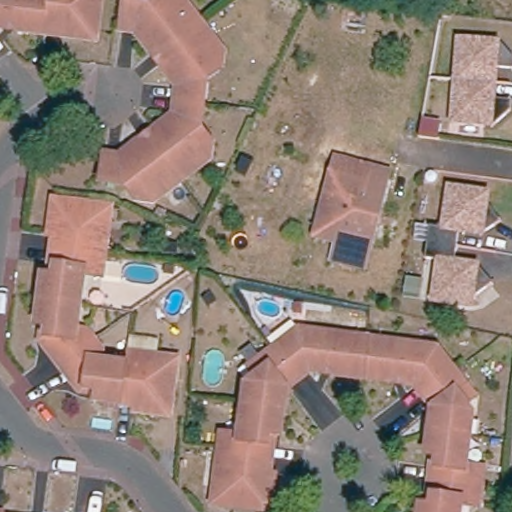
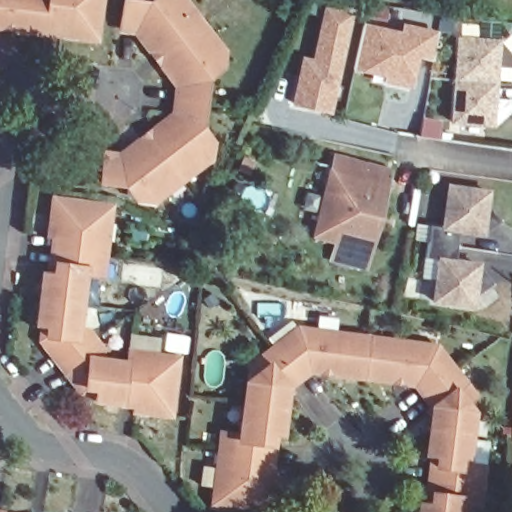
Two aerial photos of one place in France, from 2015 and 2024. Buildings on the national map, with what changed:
unchanged [(36,37),(6,35),(3,29),(0,29),(0,0),(42,0),(37,32),(36,37)]
unchanged [(42,0),(93,0),(86,44),(57,40),(57,35),(37,32),(42,0)]
unchanged [(148,54),(142,57),(126,37),(112,35),(117,9),(139,12),(145,19),(170,0),(192,27),(151,59),(148,54)]
new [(304,61),(315,64),(326,11),(350,16),(328,113),(295,105),(304,61)]
new [(355,70),(364,26),(403,35),(405,27),(423,31),(438,35),(434,59),(418,55),(413,78),(411,88),(386,83),(387,77),(355,70)]
unchanged [(167,90),(149,68),(155,64),(151,59),(192,27),(215,56),(189,76),(195,85),(192,108),(166,105),(167,90)]
unchanged [(512,54),(512,69),(497,68),(496,82),(487,81),(457,79),(461,38),(502,41),(512,54)]
unchanged [(496,82),(495,97),(512,99),(512,110),(495,125),(454,121),(457,79),(487,81),(496,82)]
unchanged [(146,141),(144,136),(162,121),(166,105),(192,108),(189,132),(181,138),(200,165),(172,187),(140,146),(146,141)]
unchanged [(172,187),(143,210),(123,184),(114,191),(93,189),(96,161),(107,164),(130,146),(134,151),(140,146),(172,187)]
unchanged [(330,156),(386,171),(360,269),(327,260),(330,249),(335,244),(310,236),(330,156)]
unchanged [(458,183),(498,189),(497,198),(511,217),(492,231),(490,246),(434,238),(419,235),(422,220),(436,222),(437,222),(452,225),(458,183)]
unchanged [(45,238),(40,237),(44,207),(101,215),(97,250),(85,250),(82,263),(42,257),(45,238)]
unchanged [(487,262),(501,280),(481,295),(480,303),(441,297),(447,257),(431,255),(434,238),(490,246),(487,262)]
unchanged [(32,282),(44,285),(46,273),(40,273),(42,257),(82,263),(81,277),(75,277),(70,311),(30,305),(32,282)]
unchanged [(413,273),(428,275),(426,293),(411,291),(413,273)]
unchanged [(70,311),(65,344),(73,355),(51,371),(35,351),(38,333),(26,331),(30,305),(70,311)]
unchanged [(317,372),(312,376),(302,374),(287,385),(272,363),(287,353),(290,335),(332,340),(322,379),(317,372)]
unchanged [(332,340),(358,343),(353,382),(322,379),(332,340)]
unchanged [(427,351),(427,369),(437,385),(412,400),(405,389),(395,387),(391,382),(383,385),(353,382),(358,343),(427,351)]
unchanged [(236,388),(257,372),(252,363),(265,353),(272,363),(287,385),(271,396),(276,406),(275,416),(233,410),(236,388)]
unchanged [(73,355),(80,365),(116,369),(110,409),(86,405),(86,395),(67,392),(51,371),(73,355)]
unchanged [(130,416),(130,411),(110,409),(116,369),(128,370),(130,359),(169,365),(159,420),(130,416)]
unchanged [(437,385),(447,377),(456,388),(447,395),(463,418),(462,440),(420,434),(421,426),(427,420),(412,400),(437,385)]
unchanged [(222,445),(229,445),(233,410),(275,416),(272,440),(261,440),(259,449),(264,450),(262,464),(221,459),(222,445)]
unchanged [(422,472),(427,472),(428,462),(417,460),(420,434),(462,440),(456,476),(461,476),(460,492),(420,487),(422,472)]
unchanged [(260,487),(266,488),(263,512),(203,512),(207,472),(219,474),(221,459),(262,464),(260,487)]

